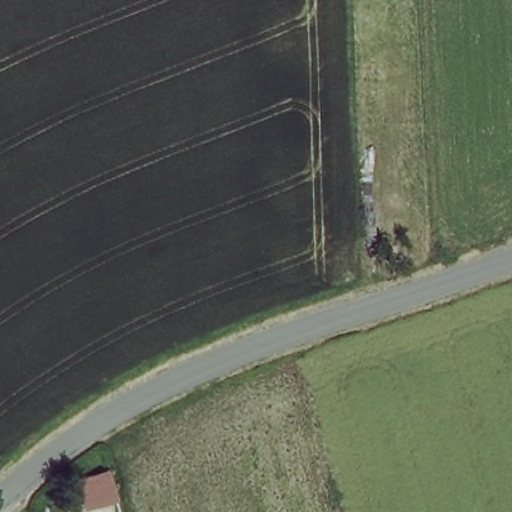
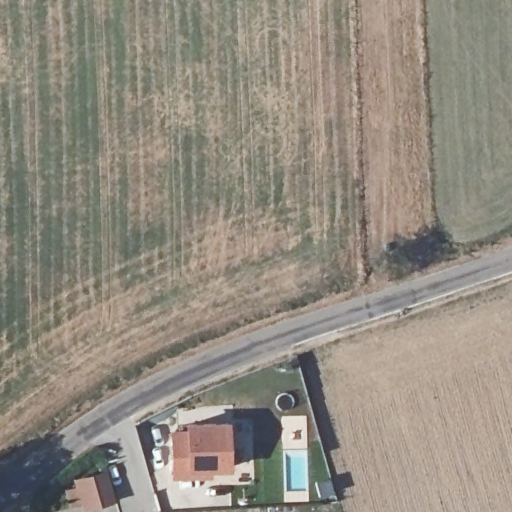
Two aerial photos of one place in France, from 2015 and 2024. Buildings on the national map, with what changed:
new [(171,433),(187,432),(187,422),(230,421),(232,471),(210,470),(211,478),(171,478),(171,433)]
new [(107,467),(114,491),(83,500),(76,476),(107,467)]

